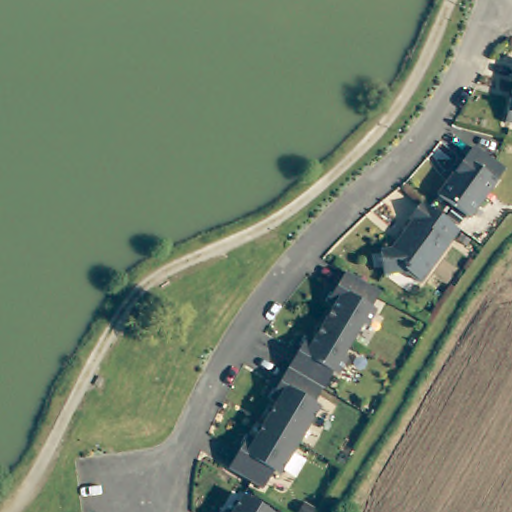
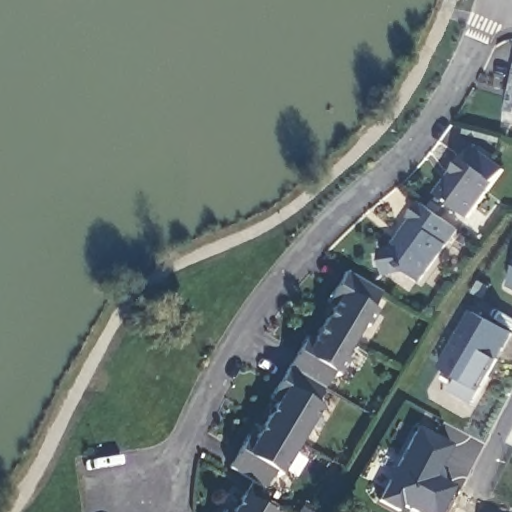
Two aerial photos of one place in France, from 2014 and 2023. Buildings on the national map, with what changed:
unchanged [(506,123),(512,95),(512,124),(506,123)]
unchanged [(459,164),(461,166),(469,154),(499,176),(464,224),(432,200),(459,164)]
unchanged [(420,282),(405,272),(384,274),(381,252),(394,249),(414,223),(410,219),(422,203),(427,207),(458,229),(420,282)]
unchanged [(374,303),(366,319),(371,322),(361,338),(357,335),(347,351),(338,368),(342,370),(332,387),(327,384),(318,399),(308,414),(314,418),(294,452),(274,486),(268,482),(259,498),(245,491),(224,478),(243,447),(249,450),(271,413),(265,409),(283,379),(302,348),(308,351),(328,317),(322,313),(340,282),(374,303)]
new [(509,288),(512,282),(512,289),(509,288)]
new [(480,394),(474,405),(452,392),(460,379),(439,366),(474,310),(512,332),(512,339),(480,394)]
new [(437,477),(455,486),(441,512),(415,512),(403,506),(399,511),(379,501),(418,426),(453,445),(437,477)]
unchanged [(241,496),(269,512),(231,512),(241,496)]
unchanged [(224,511),(225,512),(223,512),(224,511)]

